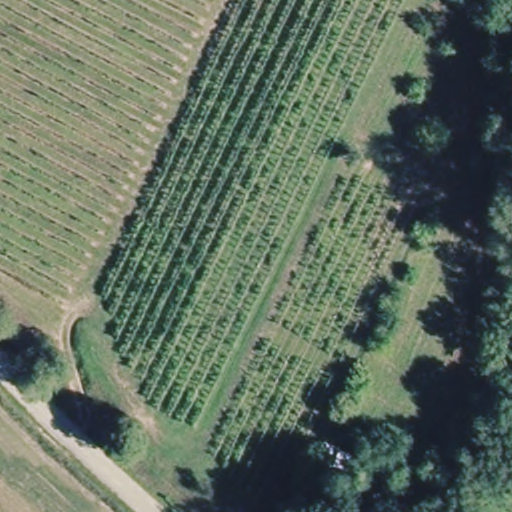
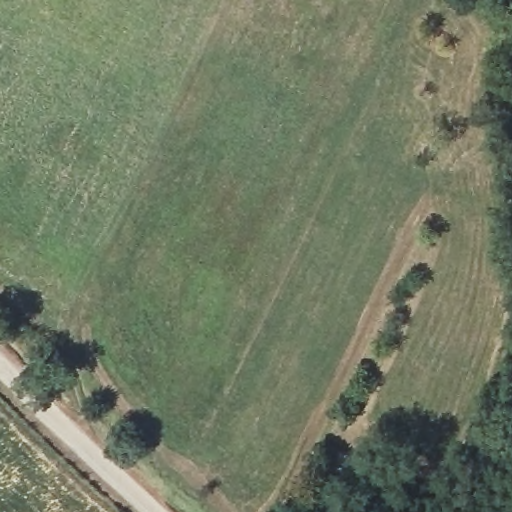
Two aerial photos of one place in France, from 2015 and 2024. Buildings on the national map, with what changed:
unchanged [(350,471),(320,458),(326,440),(357,454),(350,471)]

